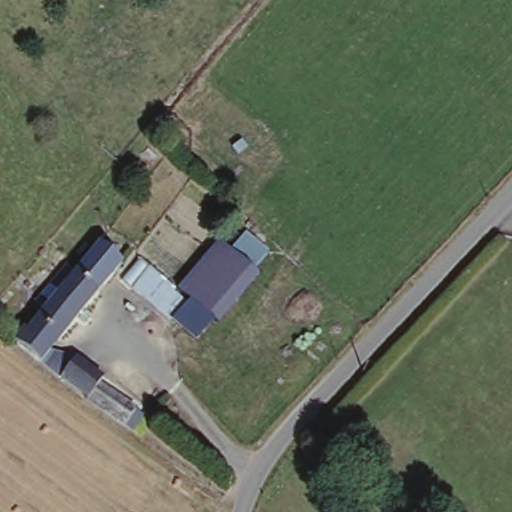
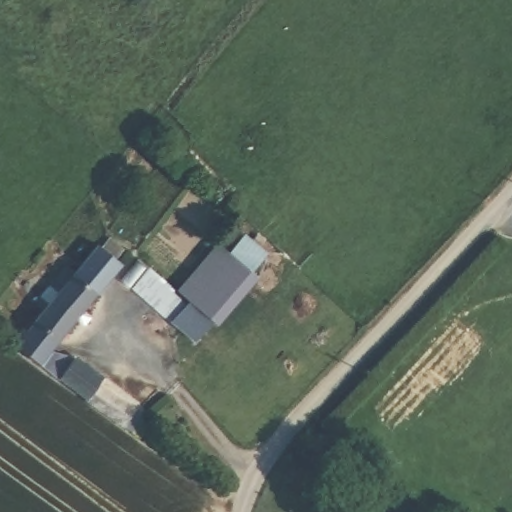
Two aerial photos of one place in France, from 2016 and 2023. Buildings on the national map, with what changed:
unchanged [(243,235),(268,251),(255,270),(229,252),(243,235)]
unchanged [(29,357),(8,341),(24,322),(29,324),(55,291),(46,282),(68,257),(75,262),(94,241),(122,264),(85,311),(91,317),(85,326),(79,321),(58,346),(54,347),(54,350),(54,352),(58,353),(79,360),(104,376),(104,384),(147,410),(133,430),(29,357)]
unchanged [(124,262),(134,255),(174,290),(215,242),(263,275),(222,327),(189,304),(174,325),(114,280),(124,262)]

